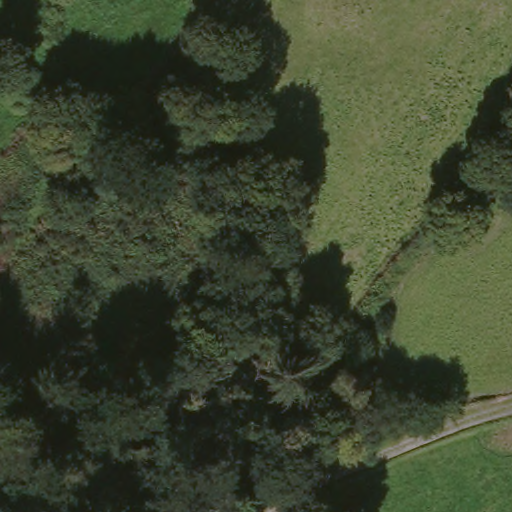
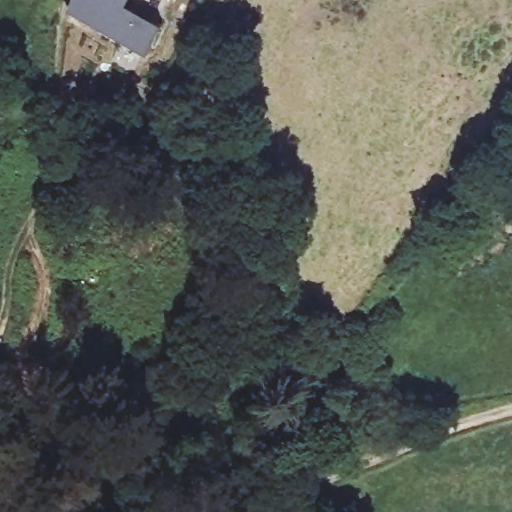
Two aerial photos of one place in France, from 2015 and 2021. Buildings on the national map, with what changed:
new [(128,4),(162,23),(149,52),(66,10),(71,0),(131,0),(128,4)]

